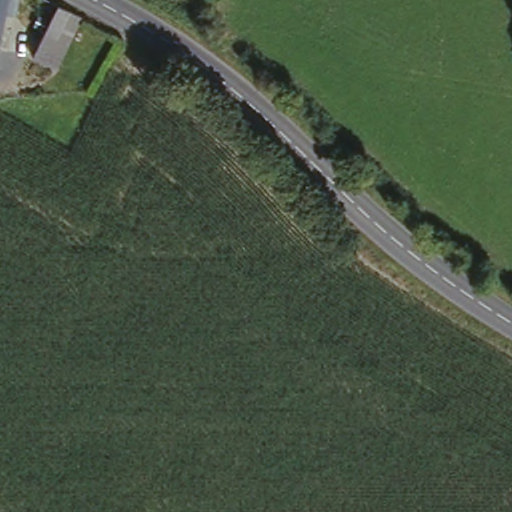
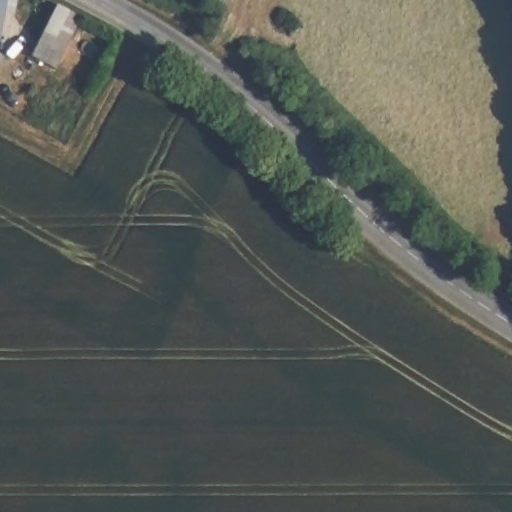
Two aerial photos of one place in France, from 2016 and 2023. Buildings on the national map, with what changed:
unchanged [(0,0),(15,0),(16,13),(6,13),(3,49),(0,49),(0,0)]
unchanged [(34,59),(41,0),(69,14),(59,38),(61,59),(34,59)]

